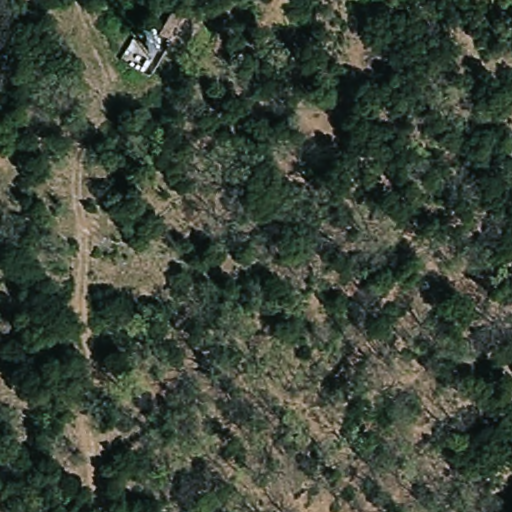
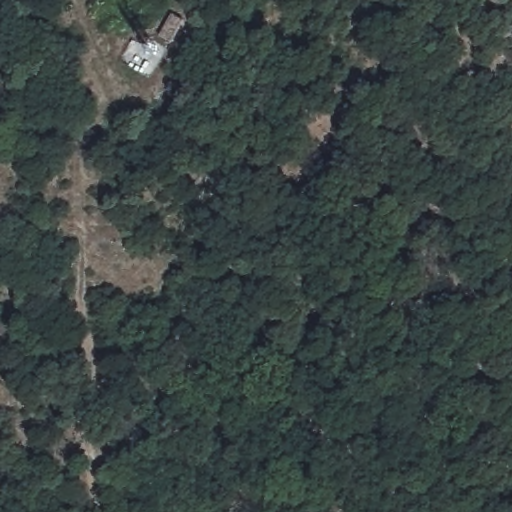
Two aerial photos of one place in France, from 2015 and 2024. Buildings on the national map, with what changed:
unchanged [(187,49),(160,35),(175,12),(198,26),(187,49)]

